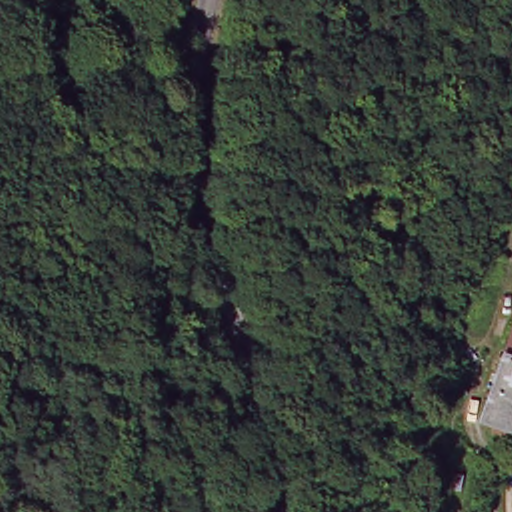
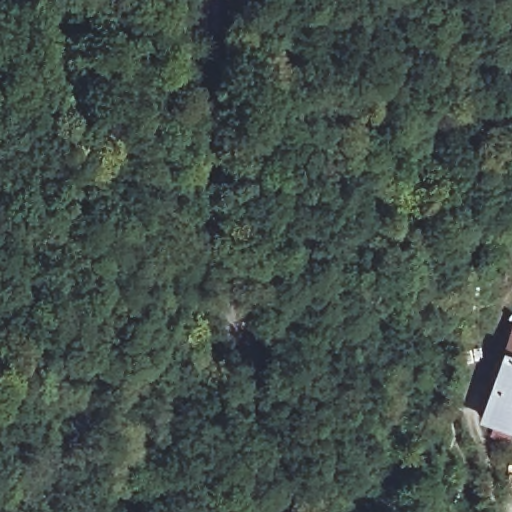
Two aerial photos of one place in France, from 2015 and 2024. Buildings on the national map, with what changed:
unchanged [(512,333),(512,413),(509,425),(477,414),(505,330),(512,333)]

